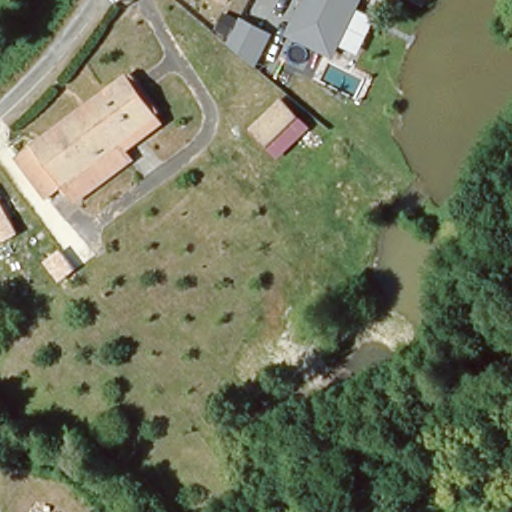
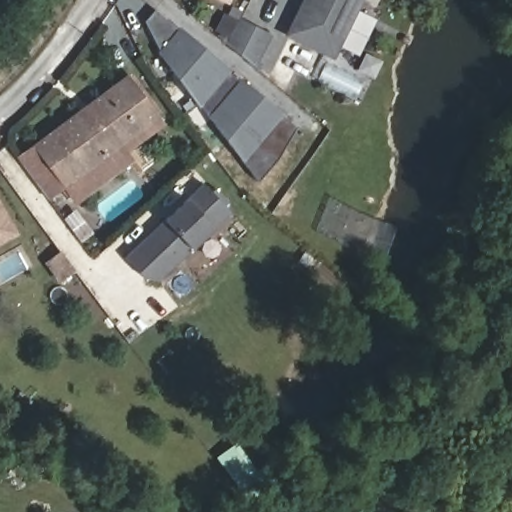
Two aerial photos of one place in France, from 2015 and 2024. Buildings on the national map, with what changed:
unchanged [(221,0),(234,0),(232,5),(221,0)]
unchanged [(285,36),(303,0),(365,0),(336,59),(285,36)]
new [(145,21),(154,10),(178,29),(179,27),(232,70),(230,73),(201,105),(198,109),(157,52),(160,50),(145,21)]
unchanged [(257,70),(228,45),(240,17),(275,33),(257,70)]
new [(201,105),(230,73),(238,80),(240,77),(282,114),(280,115),(297,130),(277,160),(258,181),(209,115),(201,105)]
unchanged [(76,200),(64,185),(47,198),(18,159),(79,113),(126,78),(149,109),(160,124),(125,151),(131,160),(76,200)]
demolished [(277,160),(248,132),(282,101),(311,130),(277,160)]
new [(215,229),(192,250),(161,280),(144,280),(126,259),(166,220),(188,200),(204,184),(232,214),(215,229)]
unchanged [(0,247),(0,201),(20,236),(0,247)]

